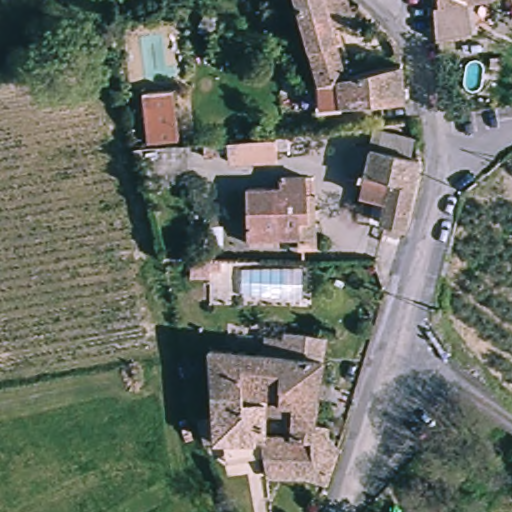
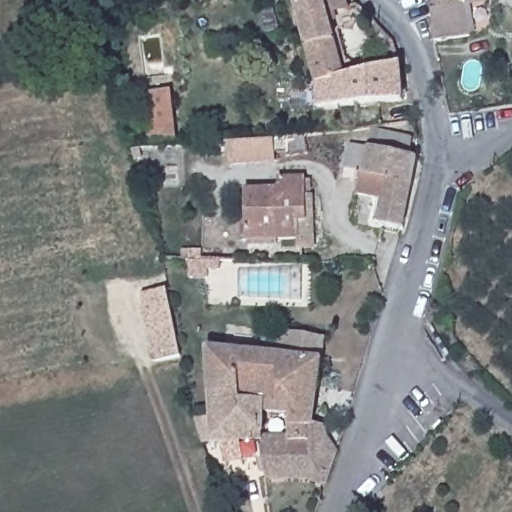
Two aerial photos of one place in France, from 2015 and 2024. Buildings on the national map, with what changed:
unchanged [(347,9),(334,11),(335,16),(330,18),(344,75),(325,79),(319,80),(297,0),(345,0),(347,9)]
unchanged [(473,31),(438,37),(433,10),(435,1),(435,0),(469,0),(473,31)]
unchanged [(344,75),(400,62),(405,100),(327,105),(325,79),(344,75)]
unchanged [(172,90),(177,140),(147,144),(142,92),(172,90)]
unchanged [(378,149),(383,130),(412,137),(408,155),(418,158),(413,183),(405,226),(380,221),(385,199),(362,194),(365,180),(348,176),(356,144),(378,149)]
unchanged [(276,154),(277,163),(228,167),(228,160),(228,146),(275,141),(276,154)]
unchanged [(197,160),(196,150),(202,150),(201,146),(215,145),(215,159),(197,160)]
unchanged [(293,242),(242,237),(247,187),(282,190),(283,179),(307,181),(305,199),(316,200),(312,245),(293,242)]
unchanged [(207,241),(226,243),(225,252),(213,251),(212,260),(193,257),(195,240),(207,241)]
new [(205,262),(223,264),(222,273),(210,272),(209,280),(190,278),(192,261),(205,262)]
new [(156,361),(143,294),(167,288),(181,356),(156,361)]
unchanged [(210,347),(238,352),(242,332),(258,335),(259,330),(320,337),(312,425),(327,425),(326,436),(287,437),(290,406),(270,405),(237,396),(230,394),(211,389),(210,347)]
unchanged [(265,437),(260,437),(204,438),(196,395),(237,396),(270,405),(265,437)]
unchanged [(263,478),(262,469),(260,437),(265,437),(287,437),(326,436),(324,446),(333,452),(327,470),(322,485),(305,480),(263,478)]

